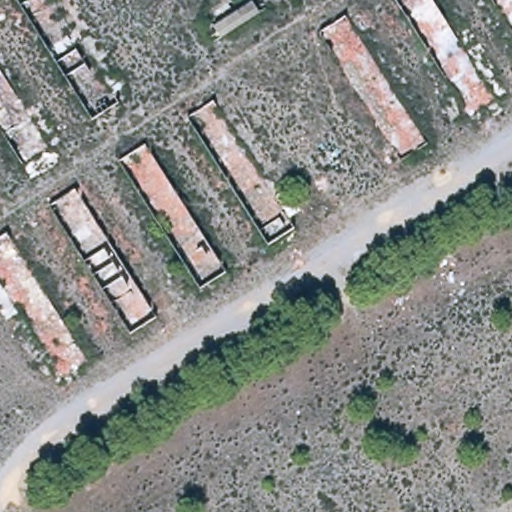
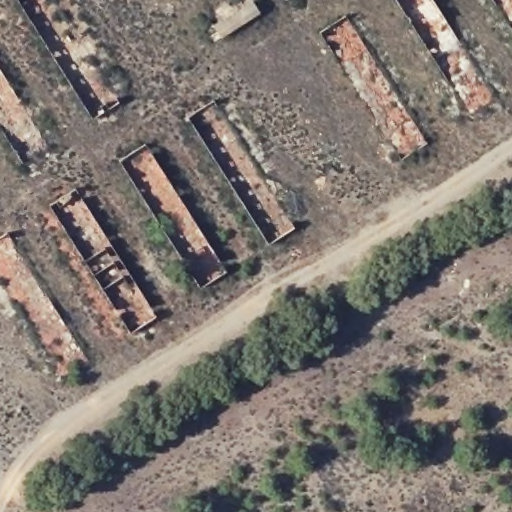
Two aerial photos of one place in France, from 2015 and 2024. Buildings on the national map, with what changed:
unchanged [(266,9),(221,40),(207,19),(242,0),(259,0),(266,9)]

